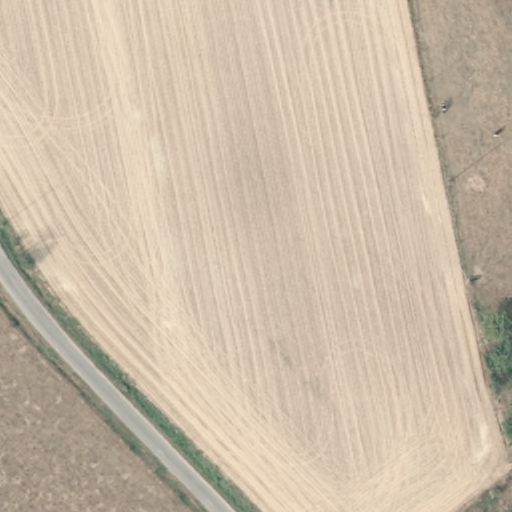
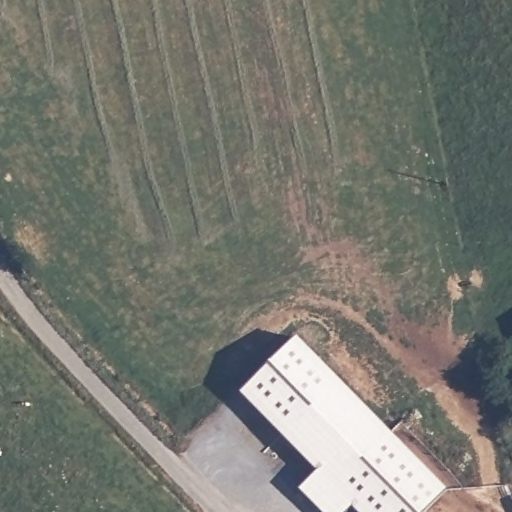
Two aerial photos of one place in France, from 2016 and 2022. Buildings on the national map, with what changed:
new [(295,337),(446,490),(424,512),(355,512),(350,506),(344,512),(319,512),(297,490),(316,472),(238,393),(295,337)]

